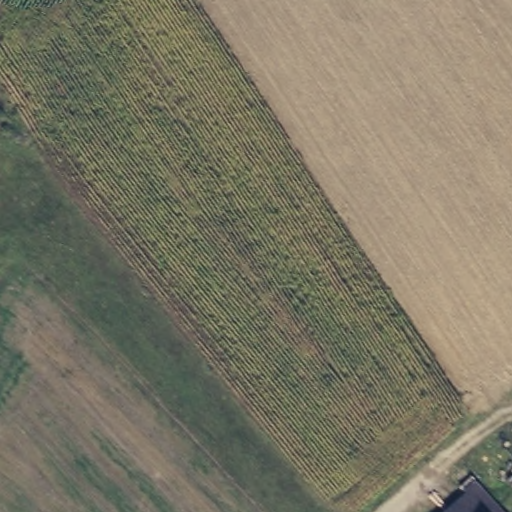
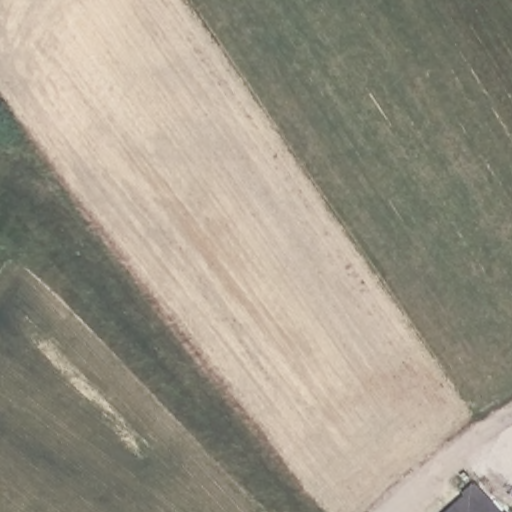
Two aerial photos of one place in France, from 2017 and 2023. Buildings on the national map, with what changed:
unchanged [(482,512),(453,512),(469,497),(482,512)]

